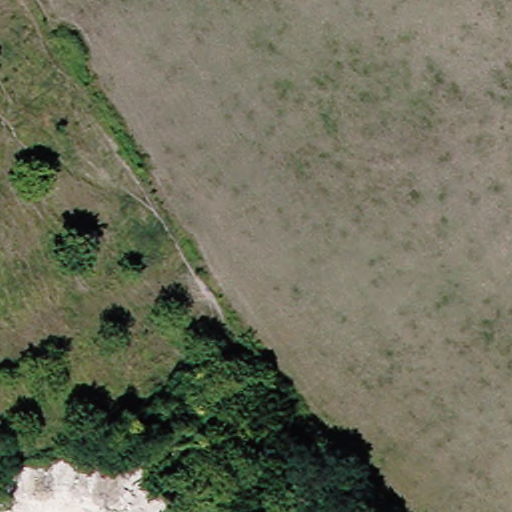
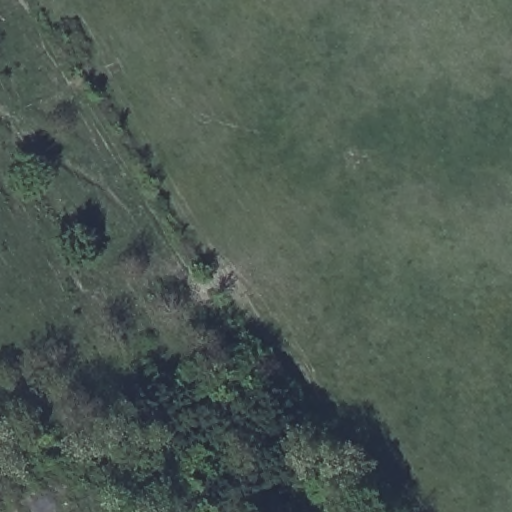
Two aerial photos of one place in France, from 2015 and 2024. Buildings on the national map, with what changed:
[]

